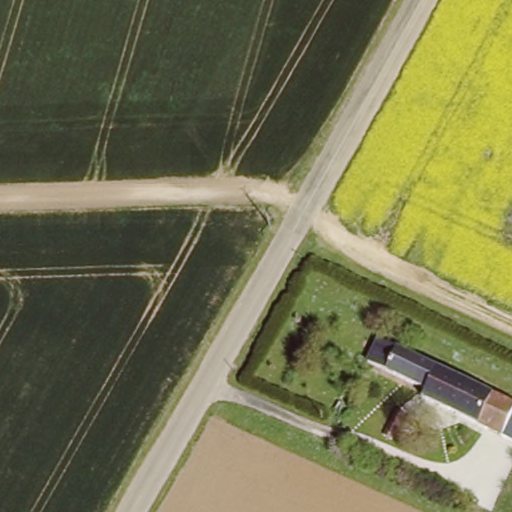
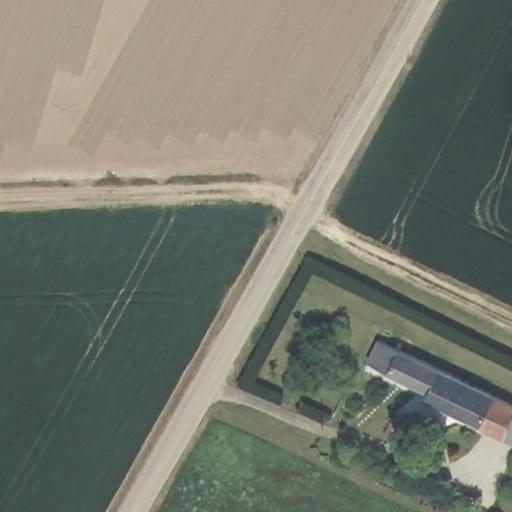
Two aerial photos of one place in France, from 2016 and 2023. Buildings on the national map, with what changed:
unchanged [(512,404),(512,443),(511,445),(430,405),(433,397),(381,371),(394,347),(512,404)]
unchanged [(399,406),(407,410),(392,436),(385,432),(399,406)]

